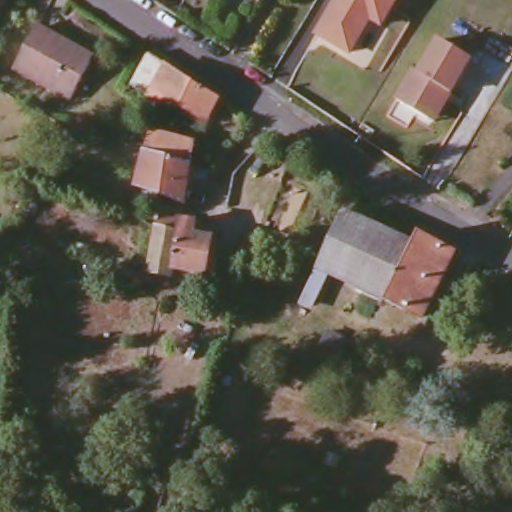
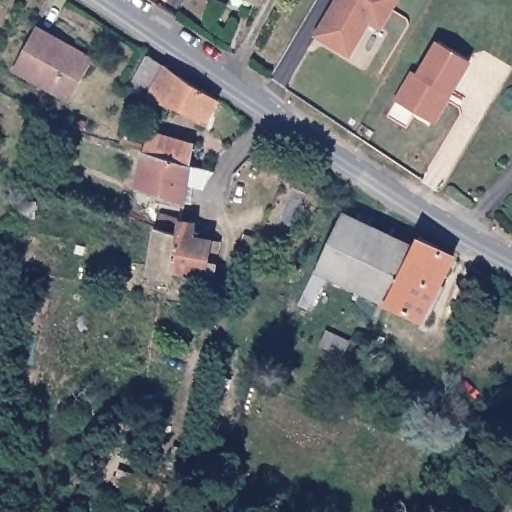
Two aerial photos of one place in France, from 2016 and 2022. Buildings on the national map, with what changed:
unchanged [(399,0),(385,26),(370,20),(367,25),(369,28),(353,55),(320,37),(341,0),(399,0)]
unchanged [(7,65),(30,24),(48,33),(63,41),(60,45),(85,57),(64,95),(25,74),(7,65)]
unchanged [(475,62),(456,97),(450,95),(435,124),(402,105),(420,75),(425,78),(443,44),(475,62)]
unchanged [(185,110),(189,104),(150,96),(154,88),(135,79),(145,58),(164,67),(166,62),(222,99),(208,122),(185,110)]
unchanged [(194,168),(145,156),(120,145),(128,127),(150,135),(156,120),(169,124),(164,140),(197,147),(194,168)]
unchanged [(45,166),(62,132),(75,139),(60,173),(45,166)]
unchanged [(135,194),(145,156),(194,168),(187,205),(135,194)]
unchanged [(199,235),(215,240),(206,278),(151,265),(158,226),(160,213),(185,218),(202,221),(199,235)]
unchanged [(410,242),(417,231),(458,253),(420,325),(333,277),(315,306),(302,303),(320,271),(348,213),(410,242)]
unchanged [(317,346),(325,331),(347,341),(340,356),(317,346)]

